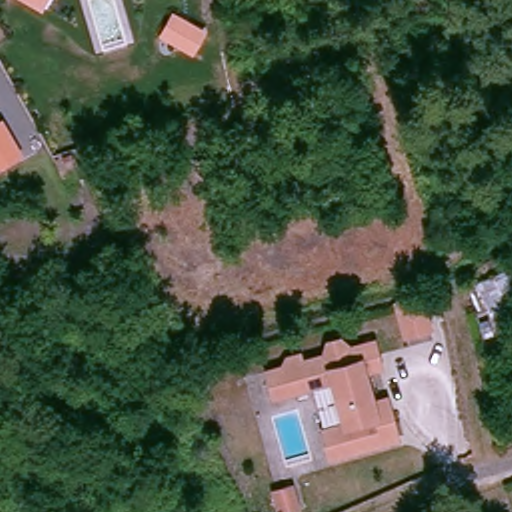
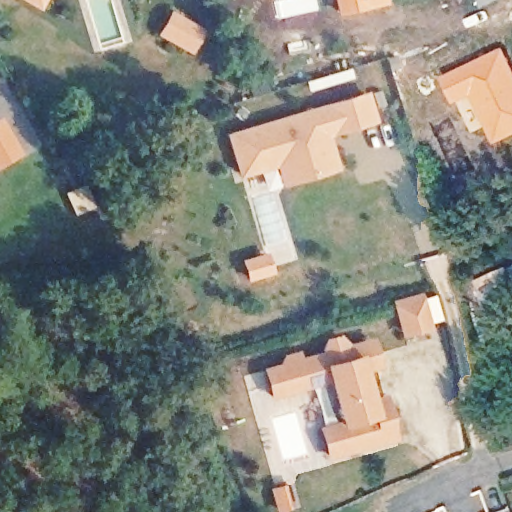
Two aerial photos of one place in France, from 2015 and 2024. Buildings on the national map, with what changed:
unchanged [(28,0),(48,0),(44,8),(28,0)]
new [(336,14),(333,0),(383,0),(385,4),(336,14)]
unchanged [(172,12),(205,27),(192,56),(159,36),(172,12)]
new [(502,46),(512,66),(512,136),(492,145),(468,98),(454,104),(441,76),(502,46)]
new [(243,177),(231,138),(321,111),(329,109),(368,97),(376,123),(336,134),(328,137),(338,170),(305,180),(286,186),(280,166),(243,177)]
unchanged [(0,169),(0,121),(3,119),(25,153),(0,169)]
new [(267,258),(272,274),(251,280),(246,264),(267,258)]
unchanged [(482,330),(465,281),(510,266),(512,274),(512,319),(482,330)]
unchanged [(421,295),(421,296),(429,323),(405,330),(397,302),(397,301),(421,295)]
unchanged [(385,419),(391,444),(326,462),(319,437),(340,431),(328,388),(270,404),(263,378),(277,374),(282,365),(295,362),(297,369),(321,362),(326,350),(333,348),(343,356),(368,349),(375,374),(360,379),(368,410),(381,406),(385,419)]
unchanged [(282,512),(280,507),(275,487),(292,482),(298,502),(300,507),(282,512)]

